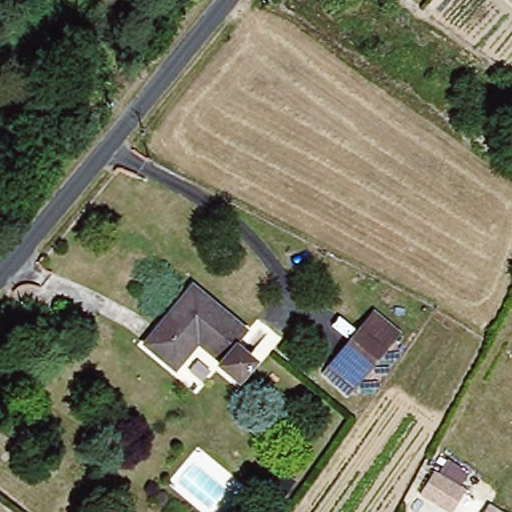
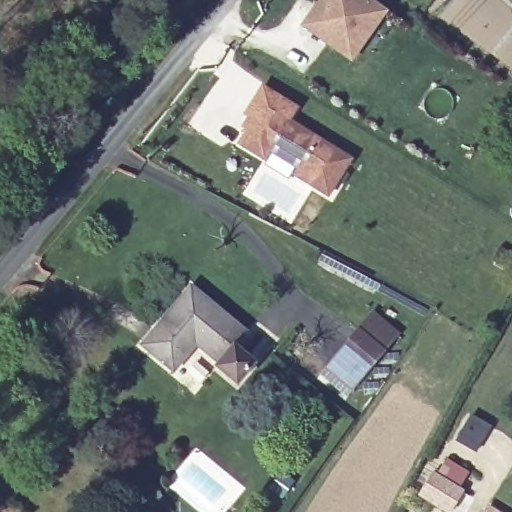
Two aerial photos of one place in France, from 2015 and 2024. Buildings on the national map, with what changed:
new [(389,9),(353,62),(298,26),(317,0),(376,0),(389,9)]
new [(298,105),(289,120),(352,157),(328,197),(291,176),(296,167),(270,152),(266,160),(237,142),(244,130),(239,127),(246,115),(242,114),(261,83),(298,105)]
unchanged [(216,371),(222,366),(197,341),(171,367),(145,342),(201,283),(252,332),(236,348),(257,367),(235,390),(216,371)]
unchanged [(357,386),(337,368),(370,332),(390,350),(357,386)]
unchanged [(432,468),(437,471),(445,458),(467,472),(460,486),(465,489),(452,512),(448,512),(417,493),(432,468)]
unchanged [(502,512),(484,512),(489,503),(502,512)]

